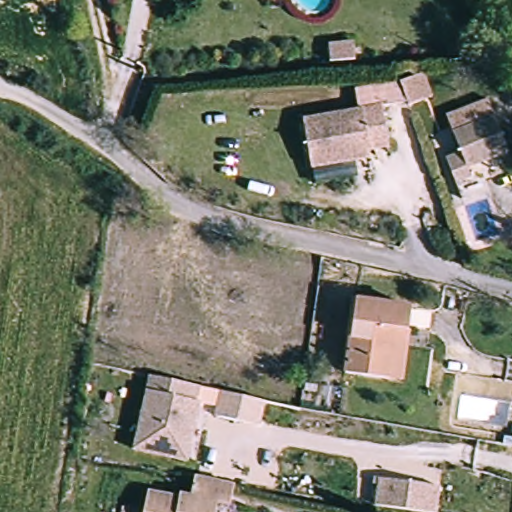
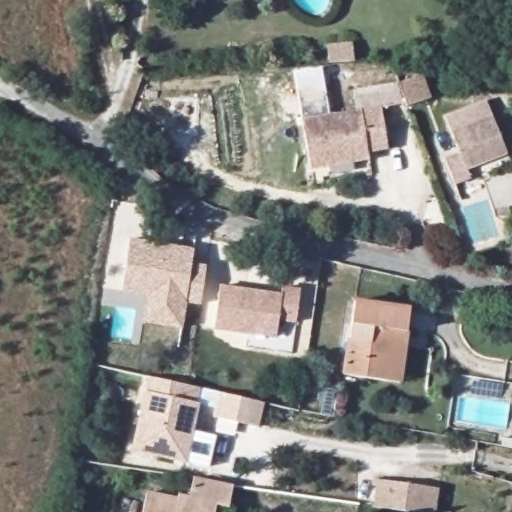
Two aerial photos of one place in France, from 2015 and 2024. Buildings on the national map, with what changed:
unchanged [(395,65),(414,57),(423,80),(403,89),(395,65)]
unchanged [(502,158),(463,173),(467,182),(451,188),(442,164),(457,158),(442,120),(483,106),(502,158)]
unchanged [(297,123),(375,110),(382,152),(365,155),(365,161),(306,171),(297,123)]
new [(119,292),(128,240),(191,251),(189,265),(204,268),(197,305),(183,302),(180,316),(178,329),(141,323),(146,296),(119,292)]
new [(221,286),(281,296),(283,289),(301,292),(296,324),(278,321),(275,338),(213,327),(221,286)]
unchanged [(384,381),(338,373),(351,303),(410,313),(406,337),(398,383),(384,381)]
unchanged [(196,460),(185,457),(140,447),(159,377),(210,389),(207,402),(210,402),(196,460)]
new [(212,393),(256,403),(250,428),(206,417),(212,393)]
demolished [(461,421),(466,395),(512,403),(512,406),(507,429),(461,421)]
unchanged [(170,498),(170,492),(185,494),(187,477),(229,483),(226,503),(213,501),(211,512),(141,512),(143,495),(170,498)]
unchanged [(442,492),(439,512),(398,512),(378,509),(382,483),(442,492)]

